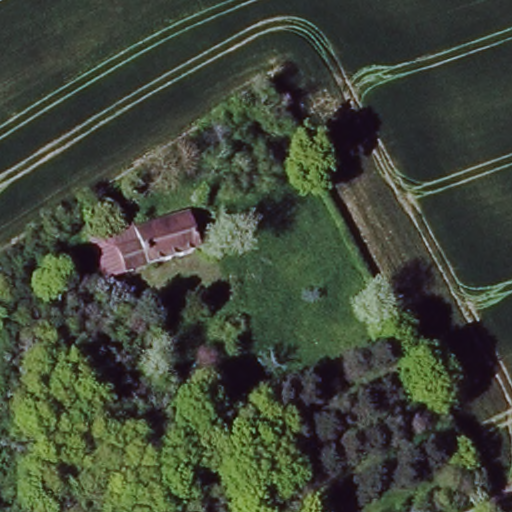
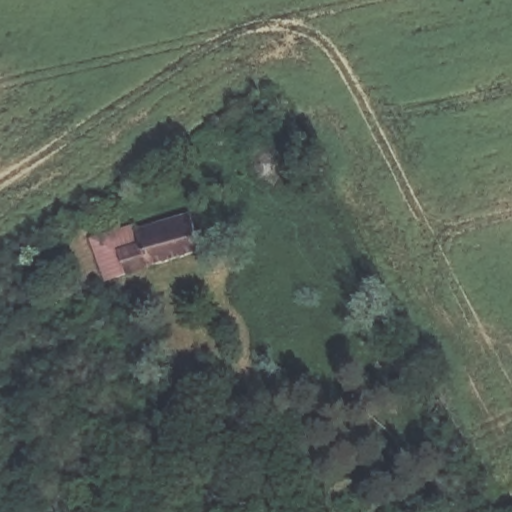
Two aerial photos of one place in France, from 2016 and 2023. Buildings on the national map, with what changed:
unchanged [(192,259),(98,274),(94,243),(129,237),(126,220),(185,211),(192,259)]

